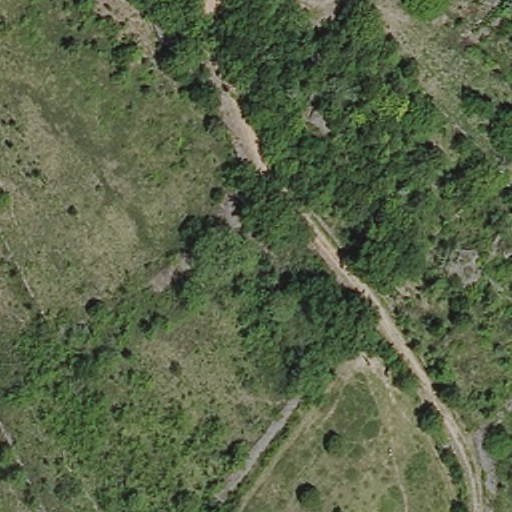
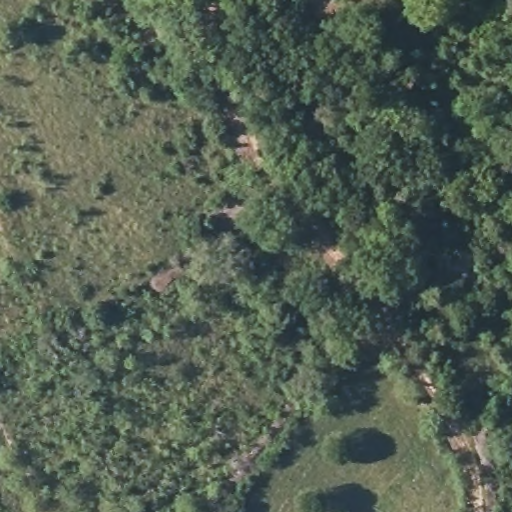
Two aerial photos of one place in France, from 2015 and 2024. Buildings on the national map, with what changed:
[]

